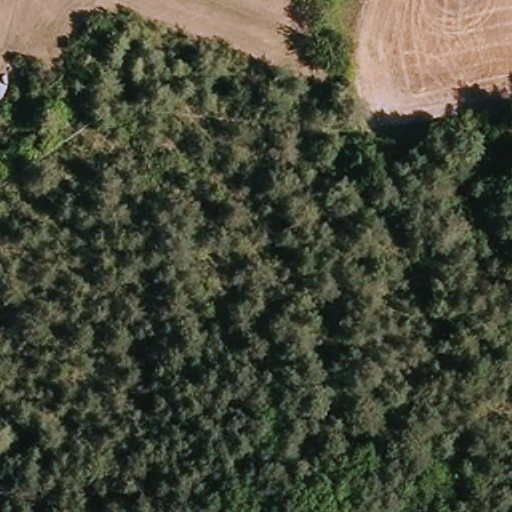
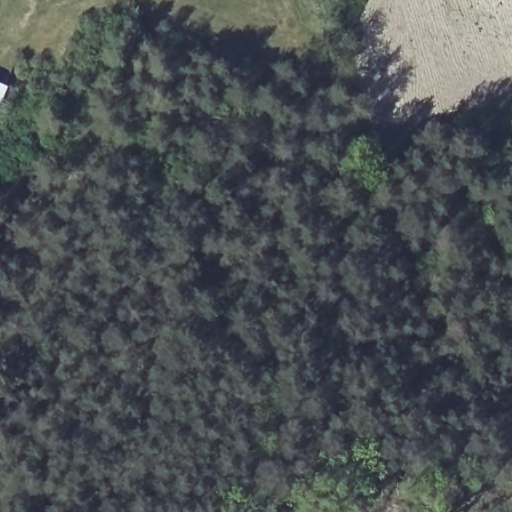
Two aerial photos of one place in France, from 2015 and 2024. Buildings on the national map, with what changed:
unchanged [(0,120),(0,85),(13,91),(0,120)]

